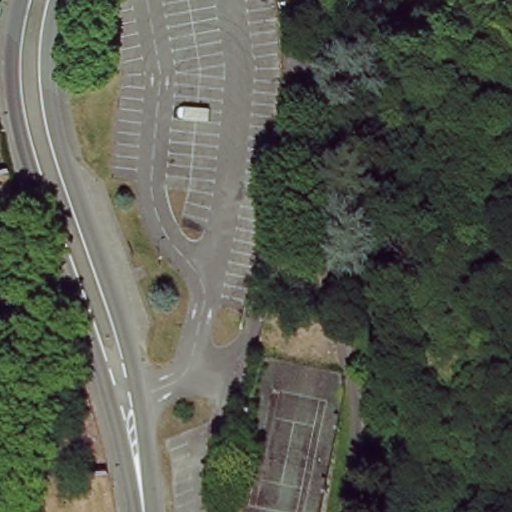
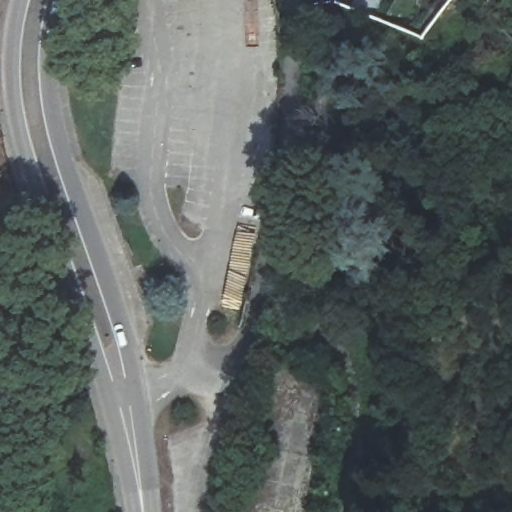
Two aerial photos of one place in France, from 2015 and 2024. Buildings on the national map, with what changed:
unchanged [(0,104),(0,87),(8,97),(0,104)]

